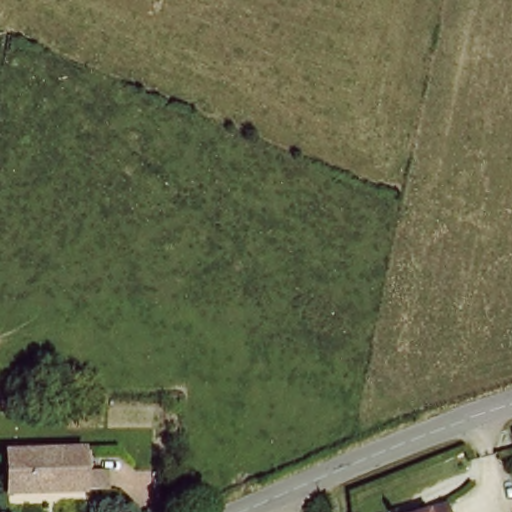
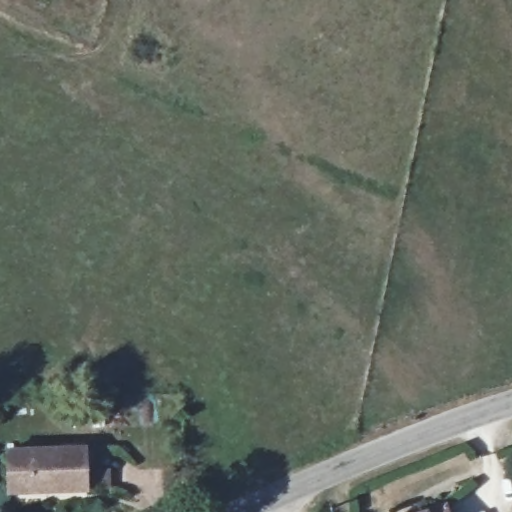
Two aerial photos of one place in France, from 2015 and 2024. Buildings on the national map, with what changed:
unchanged [(87,448),(85,493),(12,493),(11,448),(87,448)]
unchanged [(397,509),(449,500),(451,512),(398,512),(397,509)]

